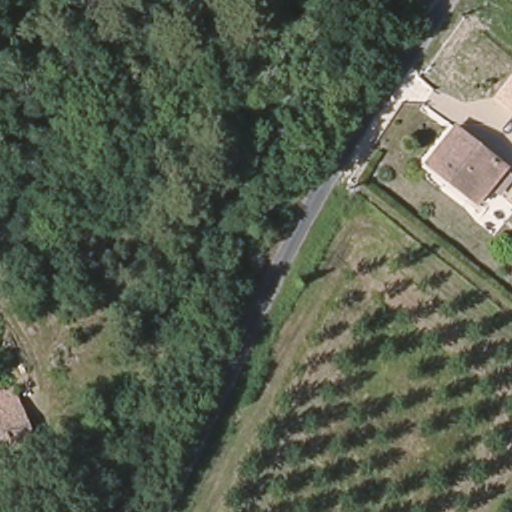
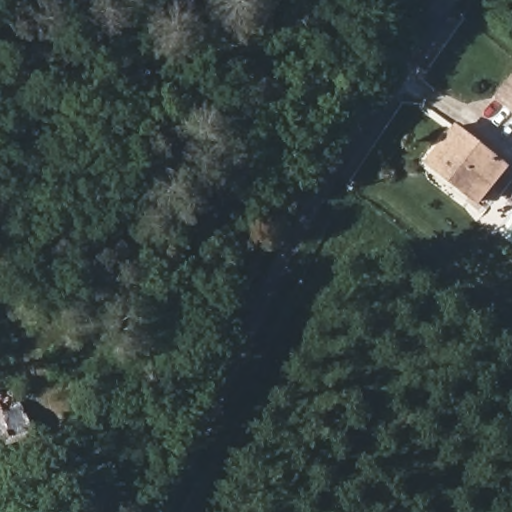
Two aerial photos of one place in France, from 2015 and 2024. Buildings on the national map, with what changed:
unchanged [(511,75),(512,75),(512,115),(492,99),(511,75)]
unchanged [(424,159),(453,125),(500,165),(474,200),(424,159)]
unchanged [(34,381),(42,403),(51,430),(33,437),(0,449),(0,393),(34,381)]

